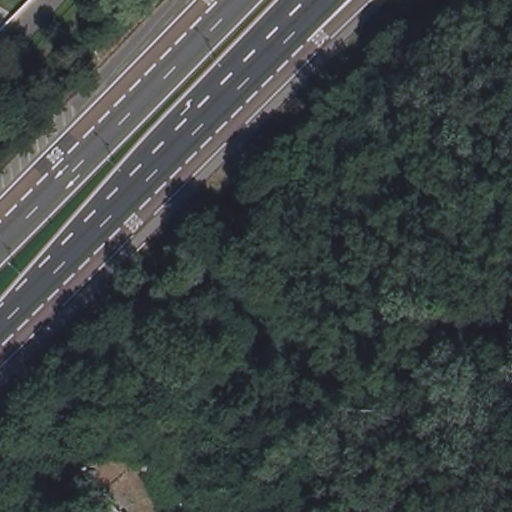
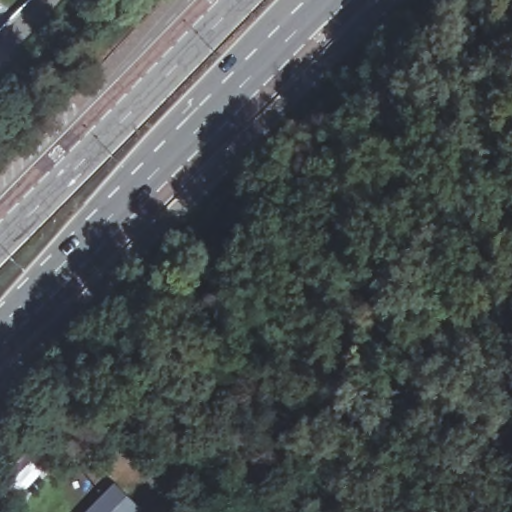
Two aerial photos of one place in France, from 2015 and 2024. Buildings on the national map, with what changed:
new [(141,510),(138,512),(85,512),(114,482),(141,510)]

